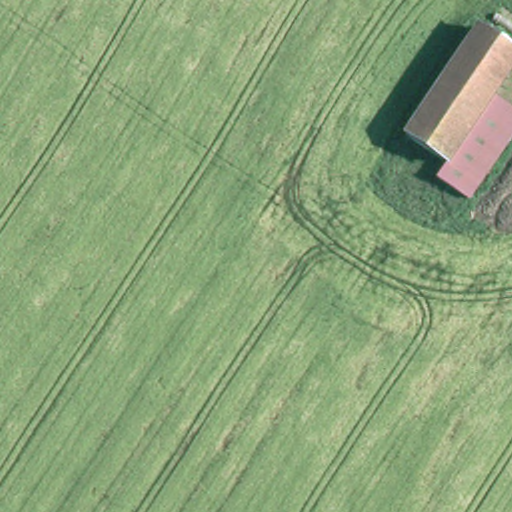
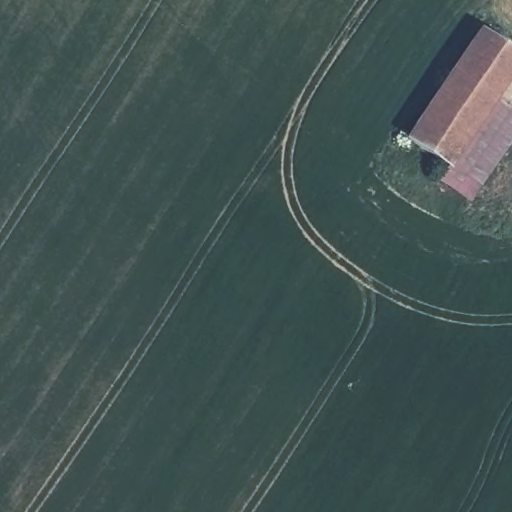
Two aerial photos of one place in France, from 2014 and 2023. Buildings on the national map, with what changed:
unchanged [(447,161),(405,134),(485,17),(512,35),(512,65),(496,89),(447,161)]
unchanged [(496,89),(512,99),(512,148),(474,205),(435,179),(447,161),(496,89)]

